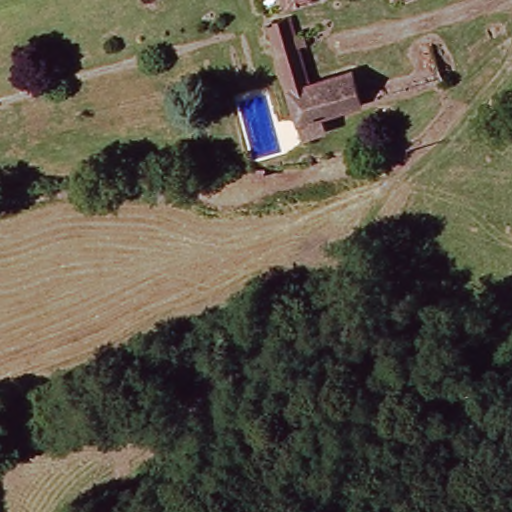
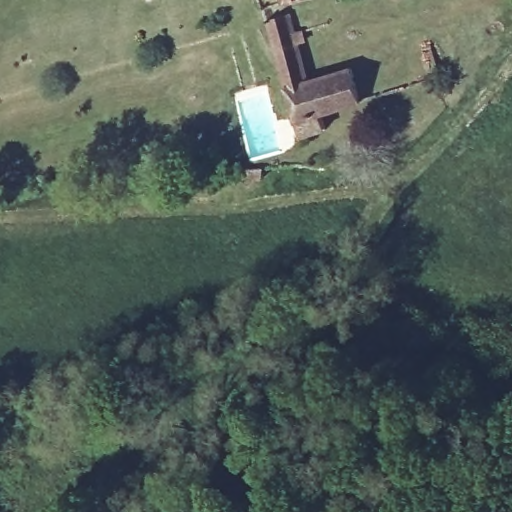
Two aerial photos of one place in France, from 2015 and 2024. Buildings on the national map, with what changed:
unchanged [(288,7),(286,0),(309,0),(288,7)]
unchanged [(268,30),(291,22),(296,38),(306,37),(309,48),(302,52),(313,90),(356,77),(365,109),(325,123),(329,137),(306,144),(268,30)]

